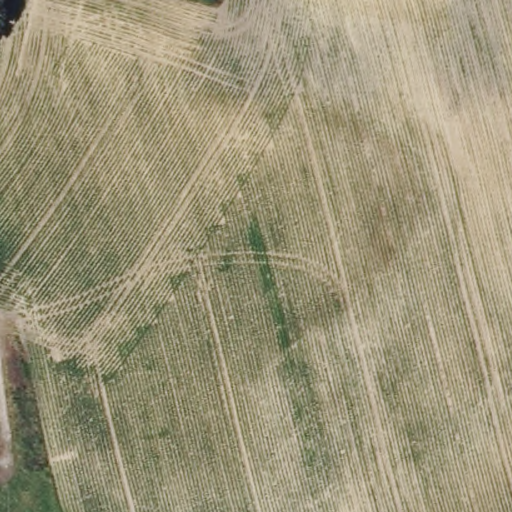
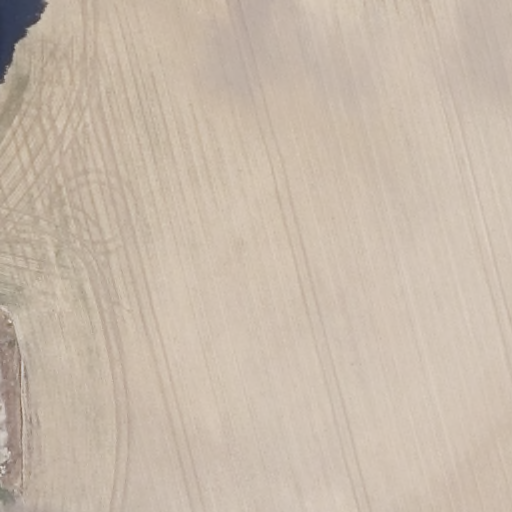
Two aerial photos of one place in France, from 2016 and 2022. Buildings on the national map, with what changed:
[]

